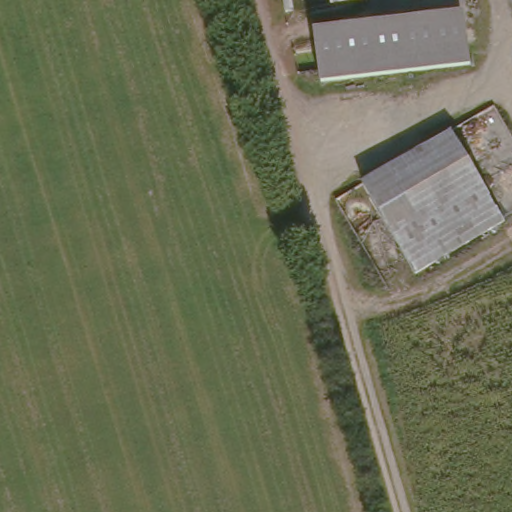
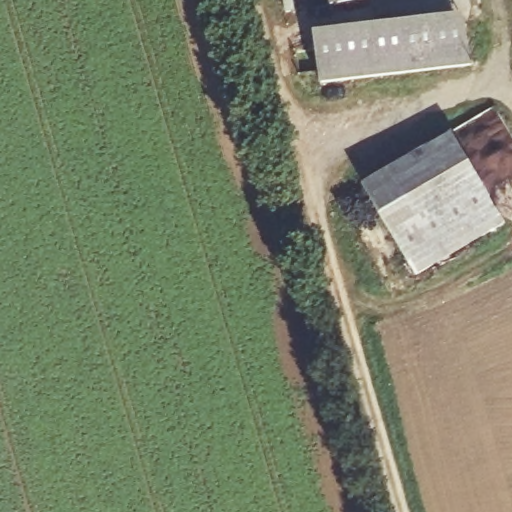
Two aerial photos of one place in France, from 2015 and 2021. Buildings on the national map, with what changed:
unchanged [(330,0),(366,0),(367,4),(332,11),(330,0)]
unchanged [(468,64),(324,82),(318,31),(461,11),(468,64)]
unchanged [(365,194),(450,145),(494,222),(407,273),(365,194)]

